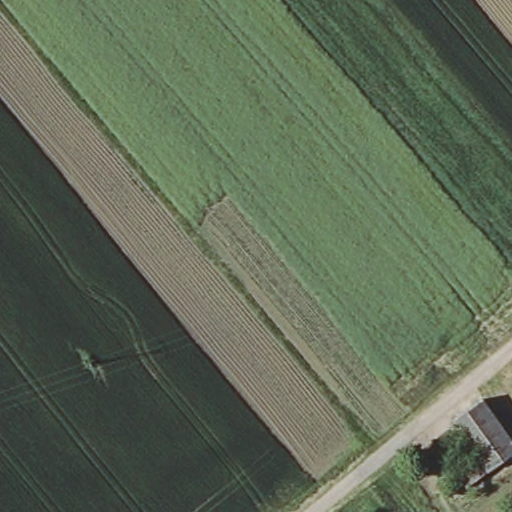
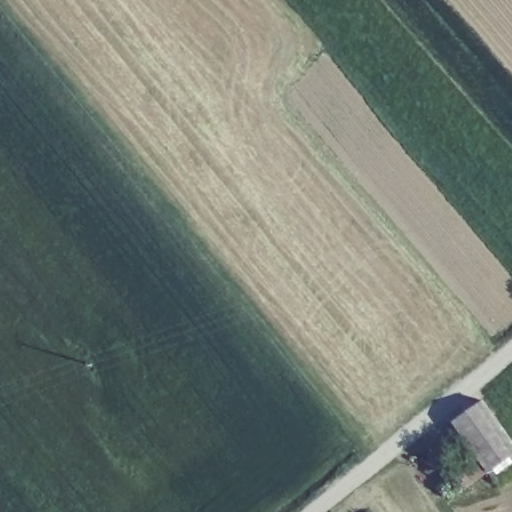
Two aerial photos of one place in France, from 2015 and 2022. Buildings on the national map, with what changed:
unchanged [(452,420),(480,400),(512,446),(512,448),(486,467),(452,420)]
unchanged [(461,475),(477,462),(485,472),(468,484),(461,475)]

